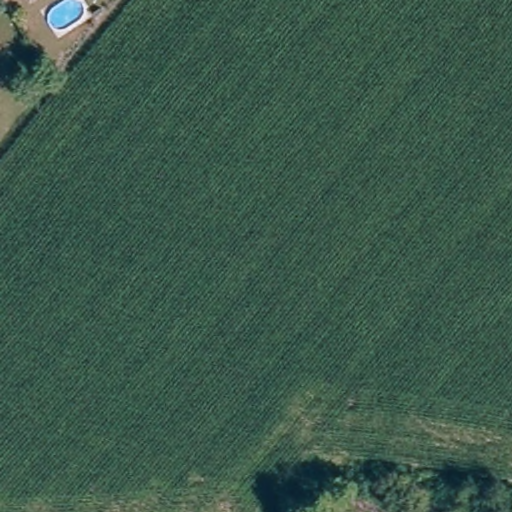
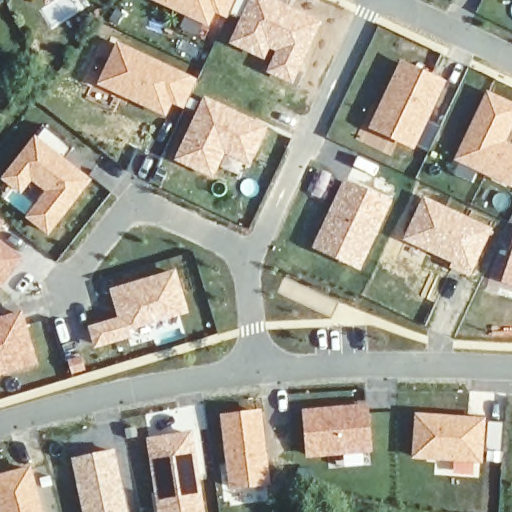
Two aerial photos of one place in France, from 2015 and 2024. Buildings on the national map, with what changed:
new [(210,27),(150,0),(236,0),(227,20),(216,14),(210,27)]
new [(264,60),(229,44),(250,0),(274,0),(321,22),(293,85),(266,72),(275,52),(270,50),(264,60)]
new [(165,117),(97,85),(116,43),(186,74),(197,79),(183,110),(172,105),(165,117)]
new [(401,60),(447,81),(415,150),(369,129),(401,60)]
new [(454,160),(487,91),(512,103),(512,127),(505,141),(512,144),(512,188),(454,160)]
new [(174,161),(204,96),(268,126),(250,166),(224,155),(213,179),(174,161)]
new [(49,237),(25,219),(45,192),(31,182),(21,195),(0,179),(34,135),(38,138),(45,128),(72,149),(65,159),(92,180),(49,237)]
new [(345,180),(368,190),(365,197),(370,199),(367,204),(384,211),(377,237),(361,271),(312,249),(345,180)]
new [(470,278),(449,268),(452,263),(403,240),(422,196),(492,228),(470,278)]
new [(0,219),(5,222),(0,229),(0,219)]
new [(24,257),(0,289),(0,240),(24,257)]
new [(501,282),(512,252),(512,286),(501,282)]
new [(127,331),(130,338),(94,350),(87,327),(118,318),(110,289),(176,270),(189,313),(127,331)]
new [(0,319),(24,312),(40,365),(0,377),(0,319)]
new [(368,404),(372,453),(308,459),(304,410),(368,404)]
new [(270,486),(230,491),(221,415),(261,410),(270,486)]
new [(483,464),(411,458),(415,414),(486,418),(483,464)]
new [(205,512),(159,512),(147,438),(191,432),(205,512)]
new [(115,453),(128,512),(84,512),(74,462),(115,453)]
new [(31,466),(44,511),(41,512),(0,512),(0,475),(31,466)]

